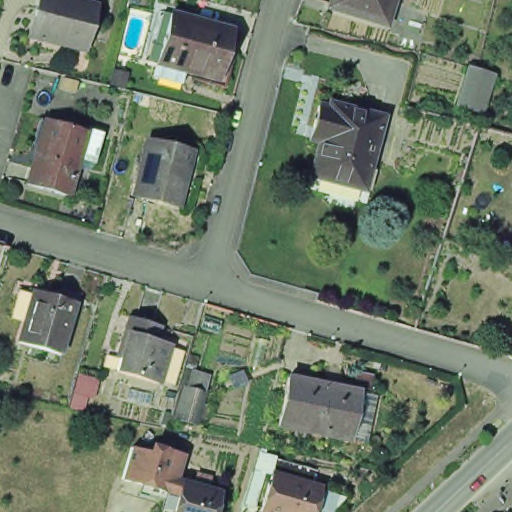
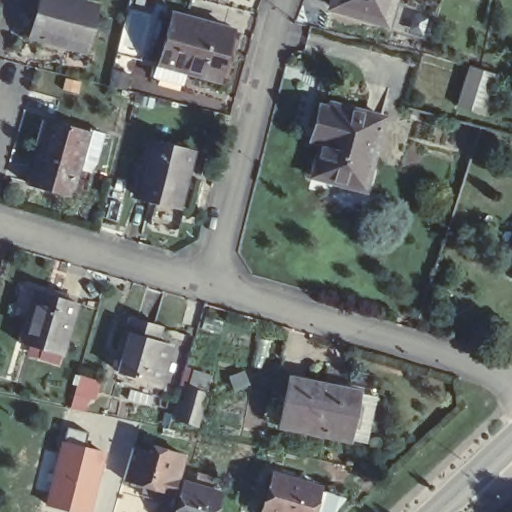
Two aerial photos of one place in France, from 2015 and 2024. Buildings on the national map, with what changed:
unchanged [(31,0),(83,0),(88,1),(77,46),(23,33),(31,0)]
unchanged [(325,4),(326,0),(386,0),(379,20),(325,4)]
unchanged [(159,14),(222,32),(207,81),(145,64),(159,14)]
unchanged [(493,74),(481,111),(456,103),(468,66),(478,70),(493,74)]
unchanged [(352,189),(306,176),(316,141),(304,139),(306,128),(312,106),(323,110),(325,104),(379,118),(365,169),(359,191),(352,189)]
unchanged [(26,186),(43,121),(84,132),(100,136),(92,167),(76,163),(67,197),(26,186)]
unchanged [(171,202),(126,190),(140,137),(184,148),(171,202)]
unchanged [(55,357),(12,344),(28,291),(71,303),(55,357)]
unchanged [(112,348),(122,313),(159,325),(154,341),(165,344),(153,382),(112,369),(118,350),(112,348)]
new [(78,374),(101,381),(87,412),(69,408),(78,374)]
unchanged [(373,391),(363,442),(349,439),(348,440),(278,427),(287,380),(337,390),(339,384),(373,391)]
unchanged [(194,423),(178,418),(187,387),(203,391),(194,423)]
new [(106,453),(94,512),(71,512),(46,506),(62,442),(106,453)]
unchanged [(223,512),(170,512),(175,493),(123,481),(133,446),(151,450),(153,443),(184,450),(178,479),(179,480),(191,482),(229,492),(223,512)]
unchanged [(271,472),(318,486),(310,512),(260,512),(271,472)]

